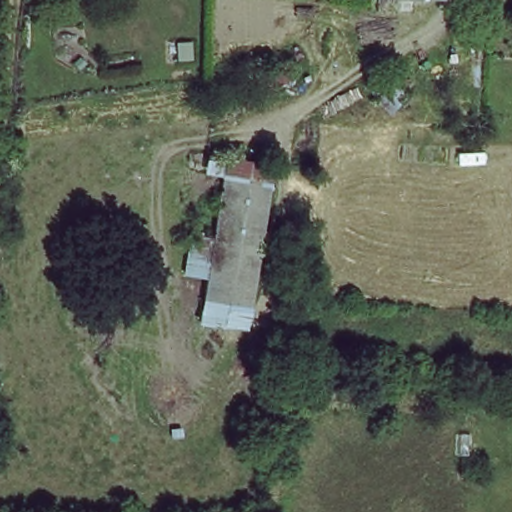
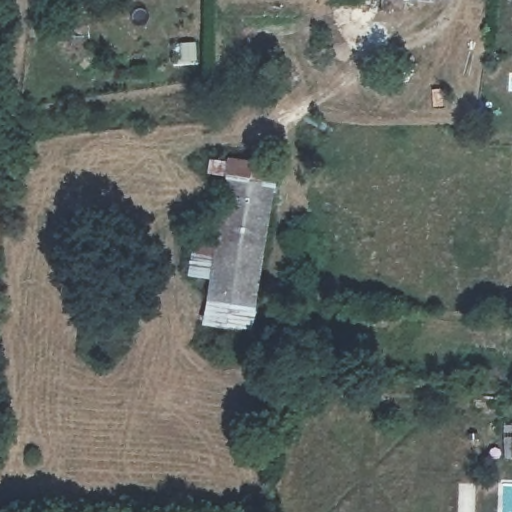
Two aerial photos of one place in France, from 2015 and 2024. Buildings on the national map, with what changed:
unchanged [(194,233),(217,233),(226,159),(280,163),(256,337),(204,324),(207,300),(183,297),(194,233)]

